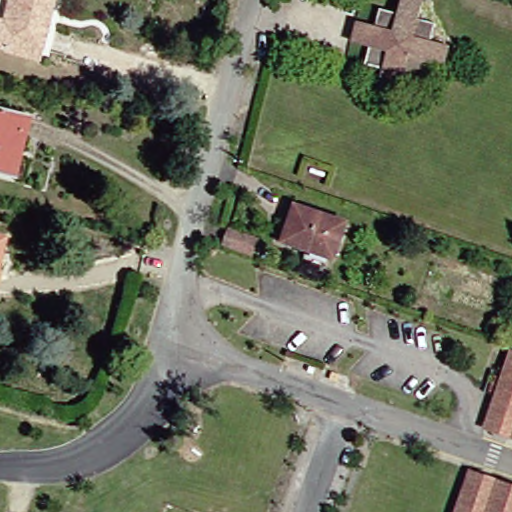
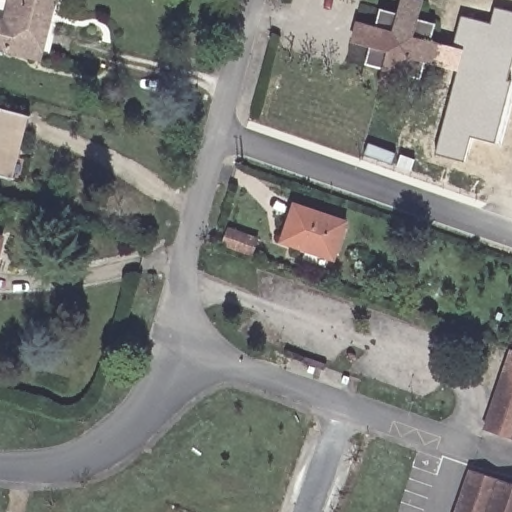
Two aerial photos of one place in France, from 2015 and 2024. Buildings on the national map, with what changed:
unchanged [(10,0),(49,0),(37,45),(32,59),(0,50),(0,38),(10,0)]
unchanged [(397,74),(392,93),(369,87),(375,68),(357,63),(362,46),(345,41),(350,21),(367,26),(372,8),(391,12),(394,0),(415,0),(417,0),(412,18),(430,23),(425,40),(443,45),(438,67),(420,63),(415,79),(397,74)]
new [(512,80),(512,84),(496,141),(471,136),(464,160),(437,154),(457,71),(438,67),(443,45),(453,47),(461,15),(492,24),(495,8),(512,12),(512,59),(507,79),(512,80)]
unchanged [(9,178),(2,176),(0,175),(0,110),(20,115),(26,116),(9,178)]
unchanged [(337,219),(325,257),(276,240),(287,203),(337,219)]
unchanged [(247,234),(242,251),(217,242),(222,225),(247,234)]
unchanged [(480,424),(505,349),(512,351),(512,438),(479,427),(480,424)]
unchanged [(462,473),(463,469),(512,486),(512,512),(447,512),(462,473)]

